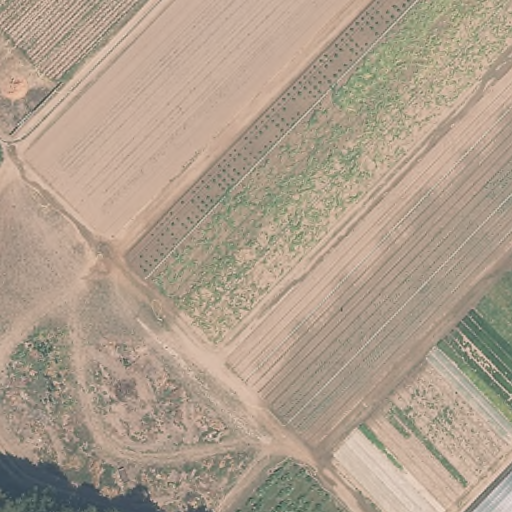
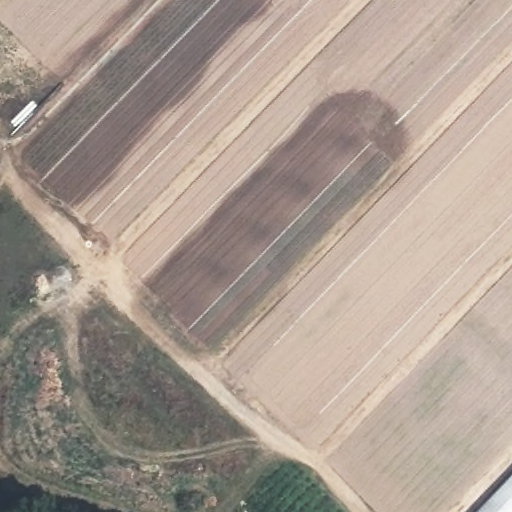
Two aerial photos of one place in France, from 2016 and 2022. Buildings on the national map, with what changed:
unchanged [(512,456),(512,512),(454,512),(512,456)]

